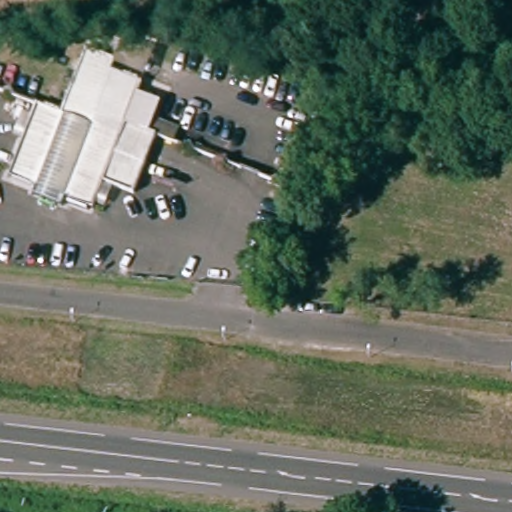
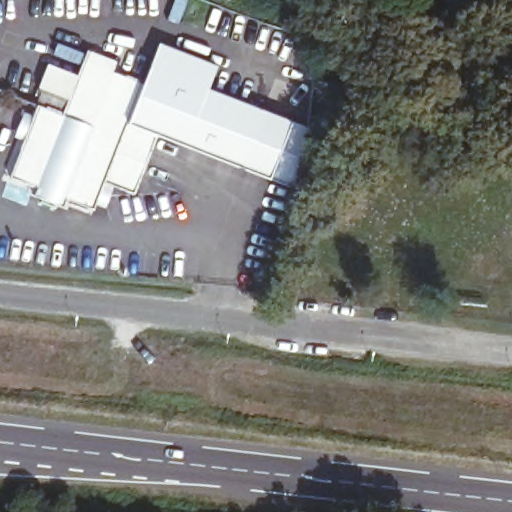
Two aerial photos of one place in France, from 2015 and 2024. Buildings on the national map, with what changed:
unchanged [(97,199),(95,204),(69,195),(66,203),(34,190),(37,182),(12,174),(27,136),(16,133),(27,107),(37,110),(41,100),(65,108),(92,42),(119,53),(114,68),(145,79),(130,119),(160,131),(137,188),(117,181),(109,203),(97,199)]
new [(160,42),(217,65),(208,89),(292,119),(310,126),(292,184),(270,176),(158,134),(160,131),(175,91),(145,79),(160,42)]
unchanged [(175,91),(160,131),(130,119),(145,79),(175,91)]

